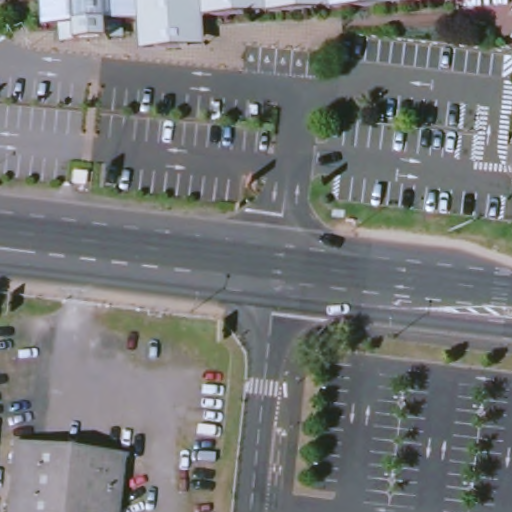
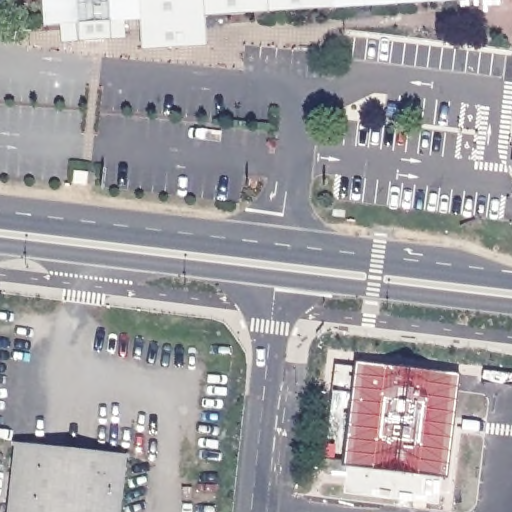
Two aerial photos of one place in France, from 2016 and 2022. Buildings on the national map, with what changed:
unchanged [(141,27),(140,17),(126,18),(127,35),(112,36),(79,38),(64,39),(63,22),(44,23),(43,0),(412,0),(346,4),(208,12),(209,22),(210,42),(193,43),(160,45),(144,46),(141,27)]
unchanged [(77,186),(78,173),(91,174),(90,188),(77,186)]
new [(352,361),(458,374),(445,478),(340,466),(352,361)]
unchanged [(123,457),(117,512),(7,512),(15,445),(123,457)]

